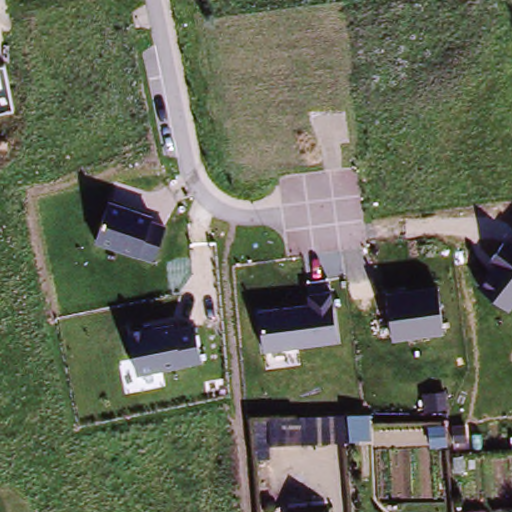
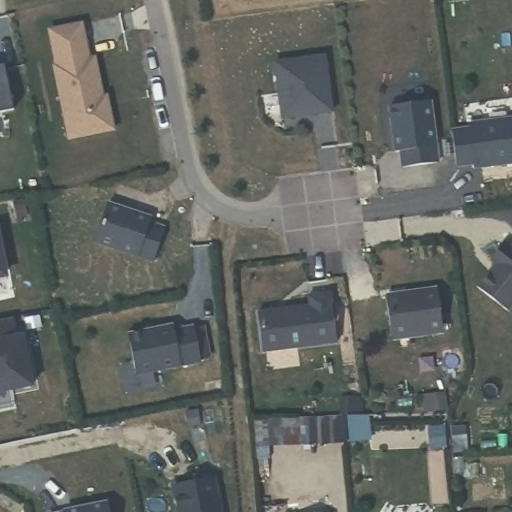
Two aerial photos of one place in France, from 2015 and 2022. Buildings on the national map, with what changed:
new [(84,20),(92,55),(97,55),(105,94),(108,93),(117,131),(68,141),(53,66),(56,66),(48,29),(84,20)]
new [(325,52),(334,108),(290,114),(284,110),(276,59),(325,52)]
unchanged [(6,65),(15,112),(0,115),(0,66),(6,65)]
new [(430,100),(440,161),(405,166),(403,150),(398,151),(391,106),(430,100)]
new [(479,164),(479,160),(461,163),(455,123),(512,116),(512,160),(479,164)]
unchanged [(109,201),(154,216),(153,221),(166,226),(155,265),(96,248),(109,201)]
new [(7,270),(0,272),(0,232),(7,270)]
unchanged [(487,264),(512,233),(512,308),(509,313),(476,285),(491,267),(487,264)]
unchanged [(385,291),(440,284),(446,335),(392,343),(385,291)]
unchanged [(264,354),(259,313),(308,305),(307,294),(332,290),(340,344),(264,354)]
new [(14,315),(19,335),(24,334),(36,384),(0,391),(0,318),(14,315)]
unchanged [(176,324),(177,330),(194,326),(202,363),(137,376),(128,333),(176,324)]
unchanged [(263,452),(254,451),(254,414),(346,413),(364,414),(367,439),(348,440),(264,442),(263,452)]
new [(219,512),(177,512),(171,484),(212,476),(219,512)]
new [(66,508),(111,499),(113,512),(51,512),(67,509),(66,508)]

